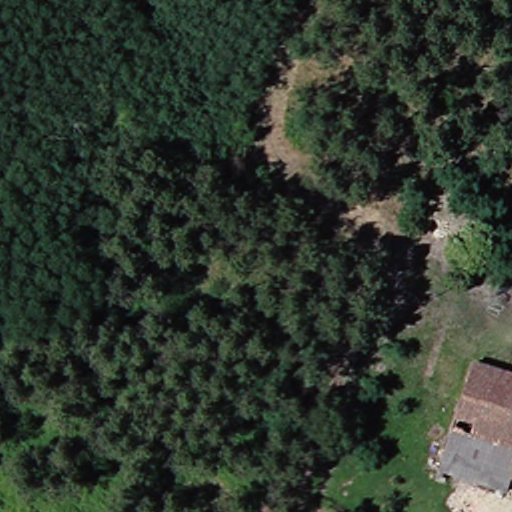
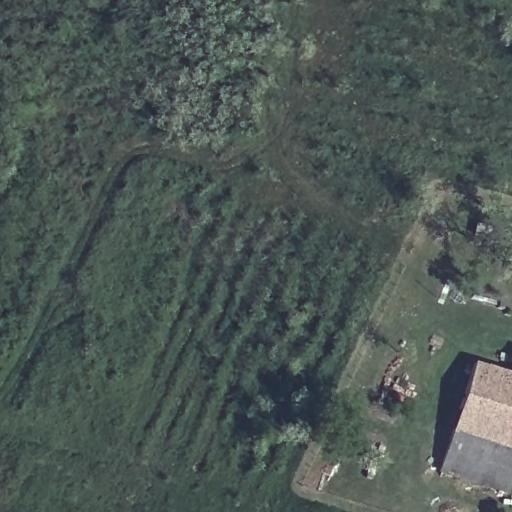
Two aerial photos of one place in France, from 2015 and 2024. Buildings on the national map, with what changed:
unchanged [(495,492),(429,469),(464,362),(503,376),(512,350),(512,482),(500,478),(495,492)]

